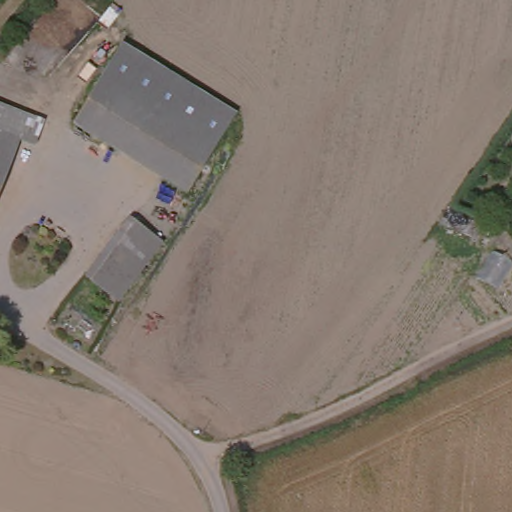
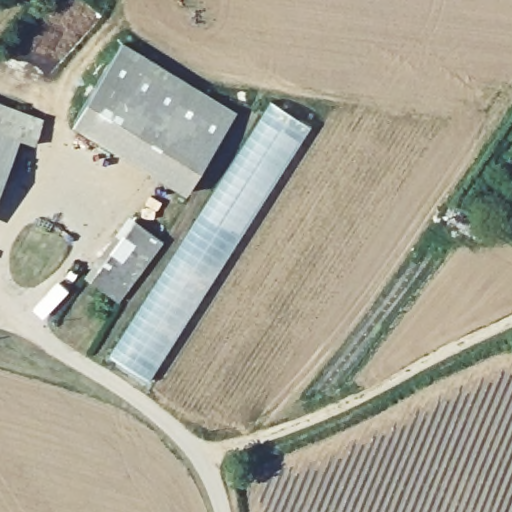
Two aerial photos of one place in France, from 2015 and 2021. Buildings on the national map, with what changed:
unchanged [(235,114),(181,190),(74,117),(125,43),(235,114)]
unchanged [(21,143),(0,135),(0,99),(49,117),(36,142),(37,149),(21,143)]
new [(272,102),(310,127),(149,380),(112,354),(272,102)]
unchanged [(0,194),(0,135),(21,143),(0,194)]
unchanged [(130,211),(164,243),(112,305),(81,277),(130,211)]

